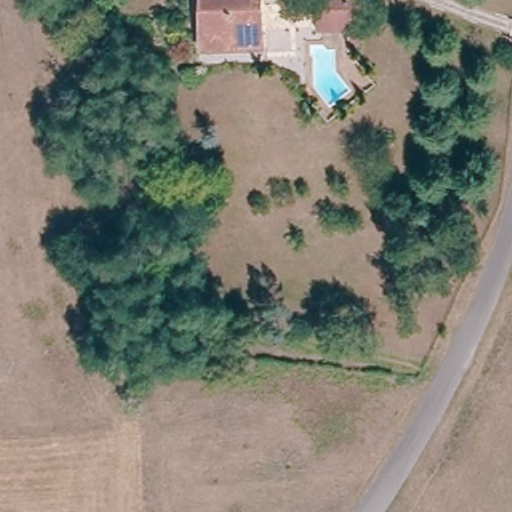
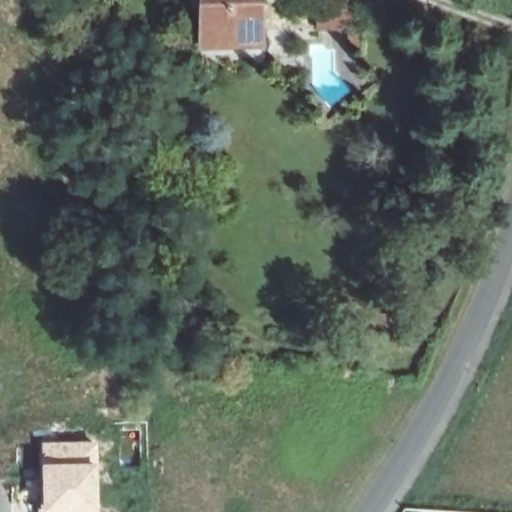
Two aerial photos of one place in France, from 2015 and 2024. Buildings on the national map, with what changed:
unchanged [(261,46),(204,47),(202,0),(260,0),(261,46)]
unchanged [(319,34),(319,0),(359,0),(359,10),(349,10),(348,35),(319,34)]
new [(43,506),(43,462),(43,442),(98,441),(98,462),(99,507),(99,512),(40,512),(39,506),(43,506)]

